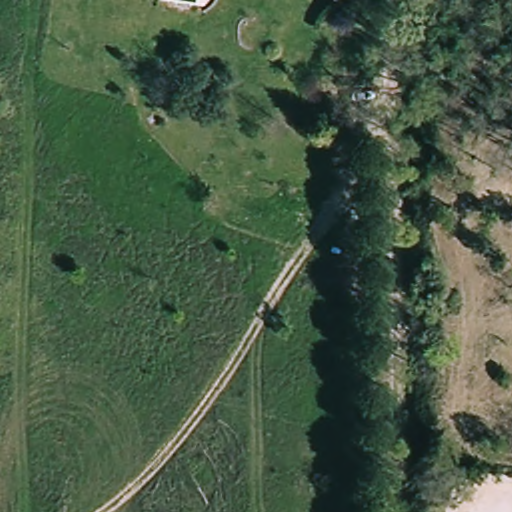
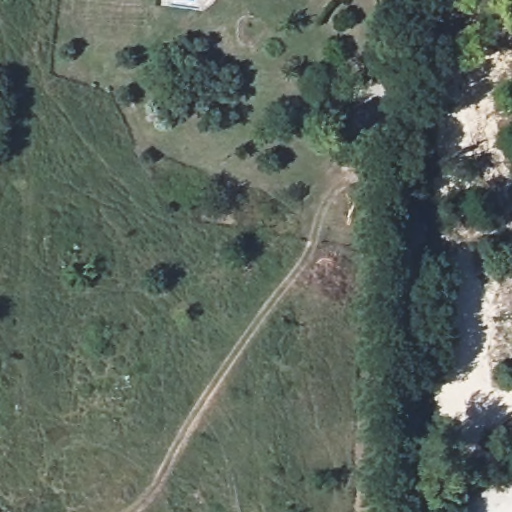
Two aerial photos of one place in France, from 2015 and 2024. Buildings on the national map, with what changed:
[]

